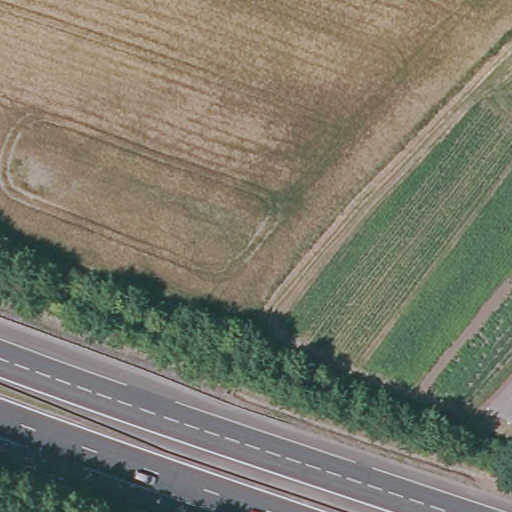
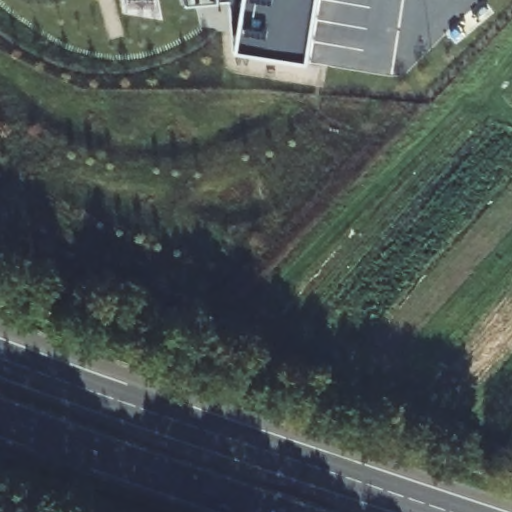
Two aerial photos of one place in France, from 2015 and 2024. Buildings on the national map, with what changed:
new [(240,59),(246,14),(226,11),(189,15),(186,0),(321,0),(309,72),(240,59)]

